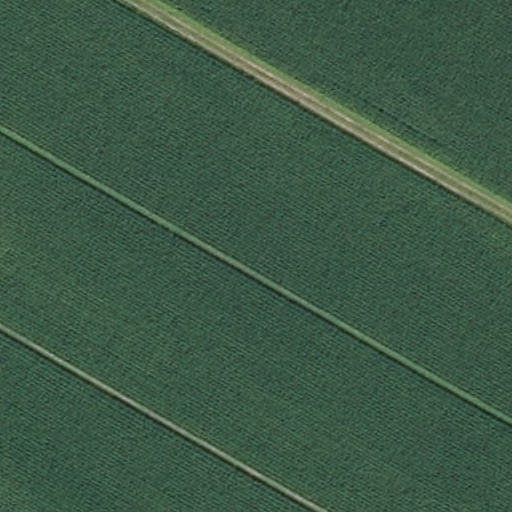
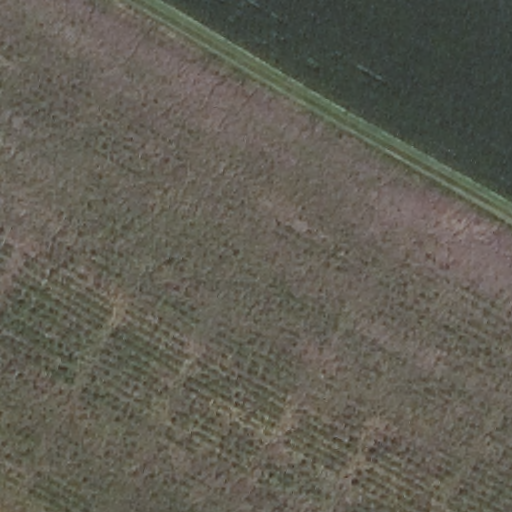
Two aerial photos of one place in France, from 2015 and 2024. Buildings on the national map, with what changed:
[]

